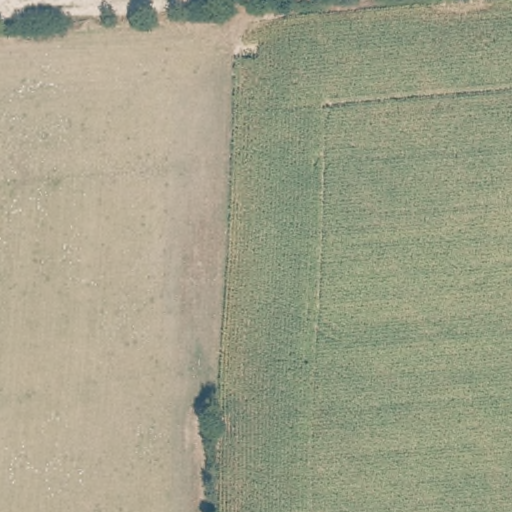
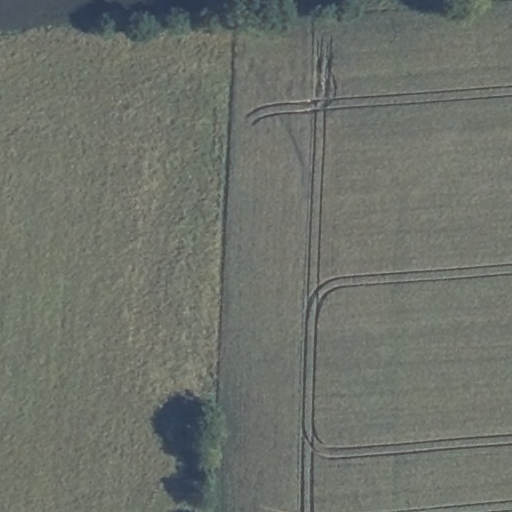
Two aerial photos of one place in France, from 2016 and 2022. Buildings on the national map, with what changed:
[]

